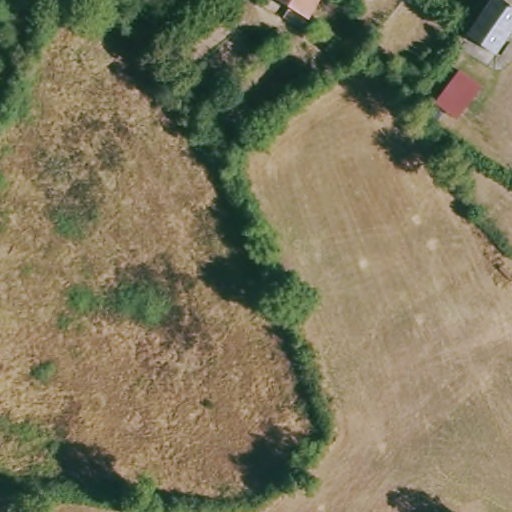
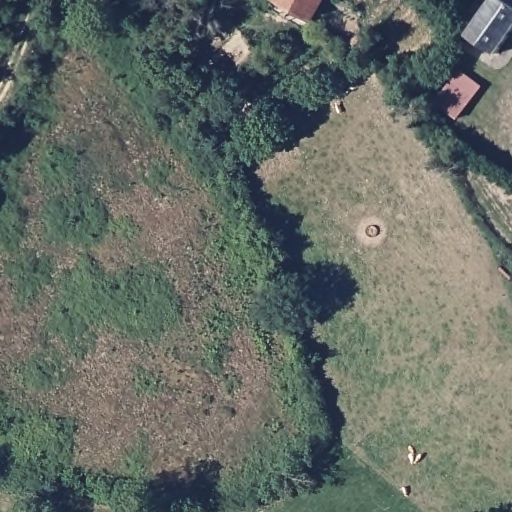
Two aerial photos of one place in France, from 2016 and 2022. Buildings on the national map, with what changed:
unchanged [(288,0),(327,0),(316,18),(288,0)]
unchanged [(470,40),(497,0),(512,0),(512,40),(499,59),(470,40)]
unchanged [(372,26),(382,40),(373,51),(353,61),(341,46),(372,26)]

